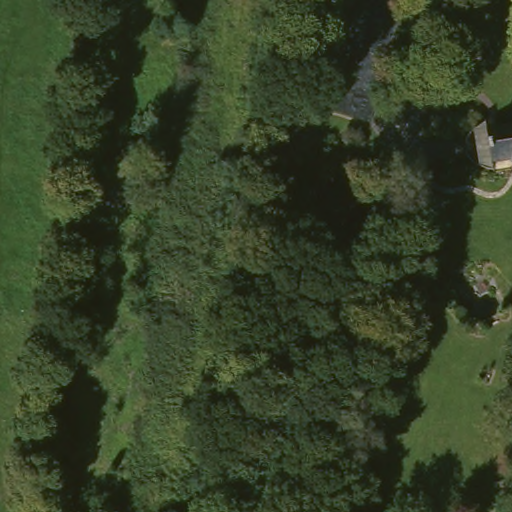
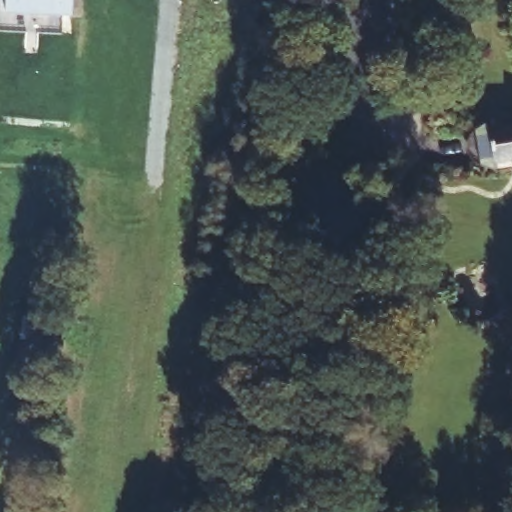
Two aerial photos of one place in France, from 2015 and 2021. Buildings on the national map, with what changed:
new [(4,12),(4,0),(71,0),(71,15),(4,12)]
unchanged [(468,136),(482,135),(481,132),(512,129),(512,164),(509,163),(507,157),(487,162),(486,159),(472,161),(468,136)]

